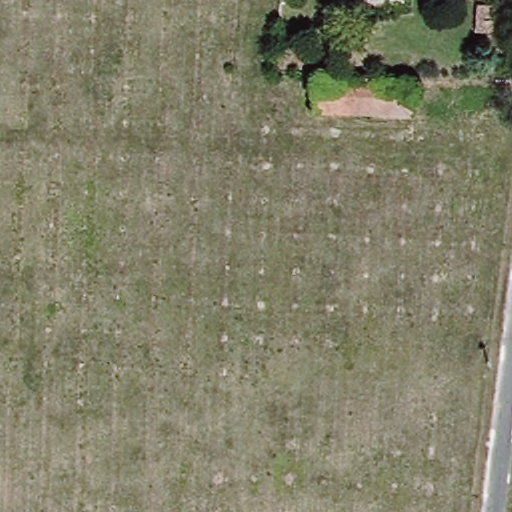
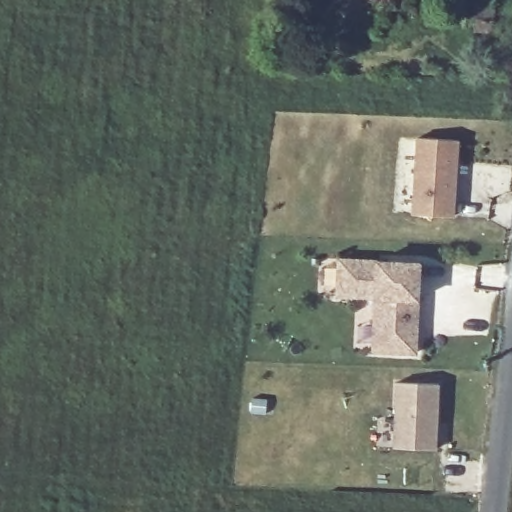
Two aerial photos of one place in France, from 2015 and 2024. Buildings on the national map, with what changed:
demolished [(405,89),(404,117),(308,111),(310,83),(405,89)]
new [(460,140),(453,219),(412,216),(418,136),(460,140)]
new [(417,356),(370,354),(372,301),(335,300),(337,257),(378,260),(422,262),(417,356)]
new [(442,383),(438,450),(392,448),(395,383),(442,383)]

